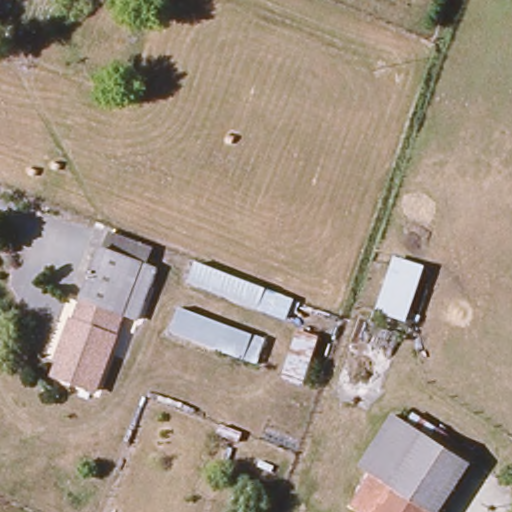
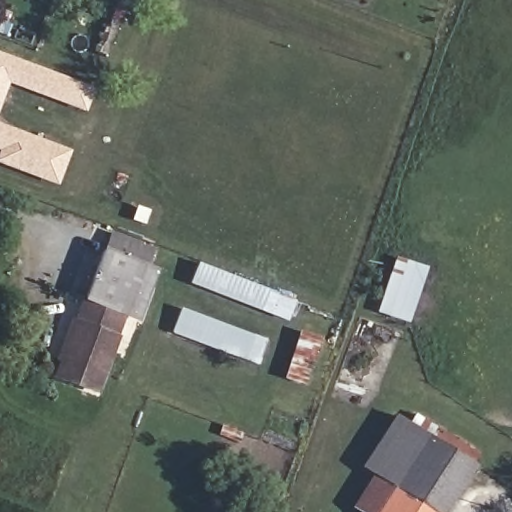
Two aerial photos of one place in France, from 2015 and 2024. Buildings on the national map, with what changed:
new [(0,105),(0,53),(95,89),(85,112),(8,83),(0,105)]
new [(58,186),(0,165),(0,124),(72,151),(58,186)]
unchanged [(110,231),(142,244),(161,251),(154,274),(101,256),(110,231)]
unchanged [(85,302),(101,256),(154,274),(156,275),(150,293),(145,291),(139,306),(145,308),(139,325),(124,320),(96,397),(56,383),(85,302)]
unchanged [(393,261),(422,270),(404,324),(373,314),(393,261)]
unchanged [(260,311),(195,286),(202,262),(268,290),(260,311)]
unchanged [(259,365),(176,333),(185,311),(266,344),(259,365)]
unchanged [(306,386),(287,380),(301,336),(319,342),(306,386)]
unchanged [(357,468),(390,418),(467,465),(440,512),(430,512),(390,490),(357,468)]
unchanged [(430,512),(377,512),(390,490),(430,512)]

